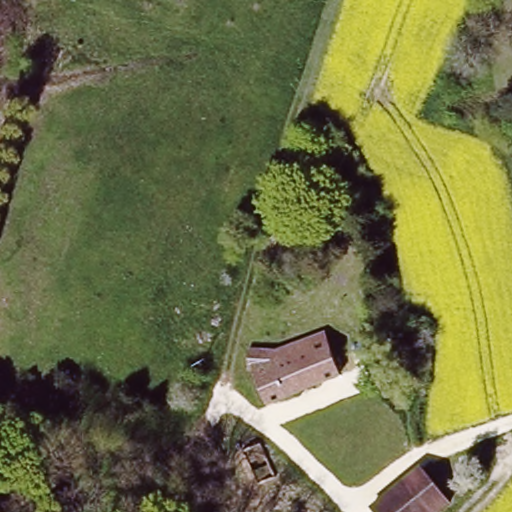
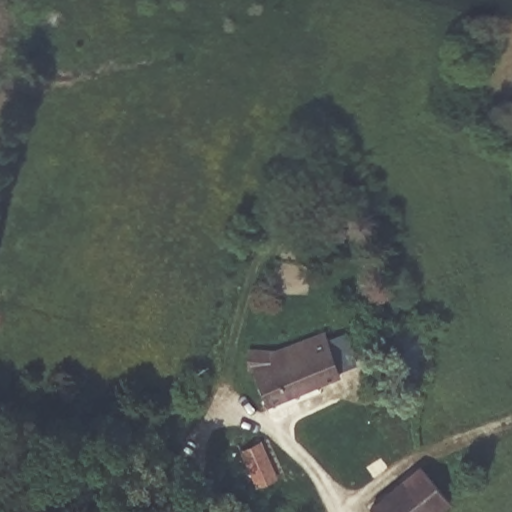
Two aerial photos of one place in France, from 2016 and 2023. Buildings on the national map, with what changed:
unchanged [(323,333),(326,342),(339,337),(350,367),(337,372),(340,379),(267,406),(254,372),(246,369),(253,350),(274,351),(323,333)]
unchanged [(261,445),(274,479),(254,487),(241,452),(261,445)]
unchanged [(449,503),(438,512),(374,512),(370,506),(423,467),(449,503)]

